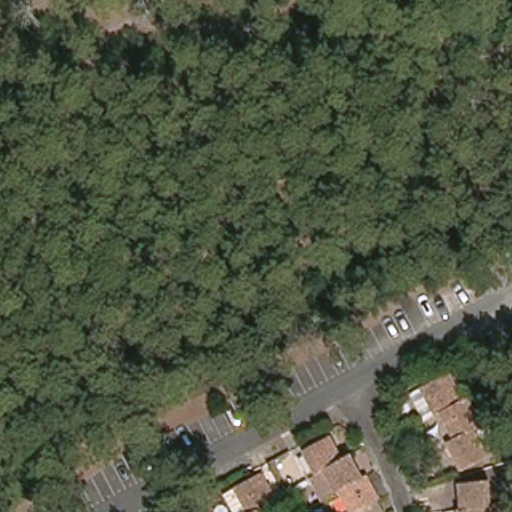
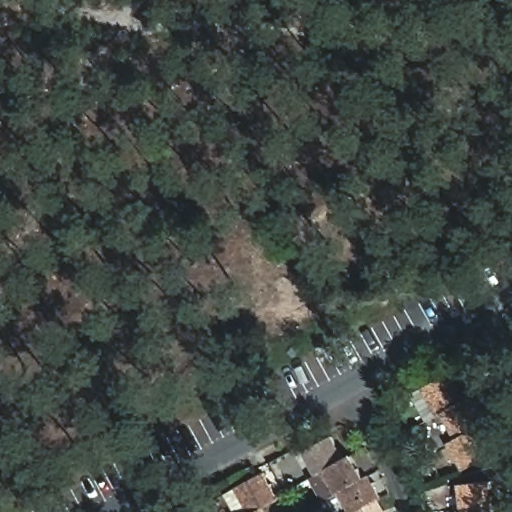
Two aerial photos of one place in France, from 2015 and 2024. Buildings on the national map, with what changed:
unchanged [(455,451),(440,426),(446,423),(431,396),(419,371),(447,357),(460,381),(464,379),(478,405),(470,410),(484,436),(455,451)]
unchanged [(337,495),(333,497),(321,474),(315,478),(305,454),(332,440),(344,462),(352,458),(363,479),(367,477),(381,501),(374,504),(378,512),(349,512),(337,495)]
unchanged [(273,497),(262,503),(267,512),(247,512),(250,511),(242,488),(260,478),(273,497)]
unchanged [(456,511),(461,510),(457,486),(488,482),(491,506),(487,506),(488,512),(456,512),(456,511)]

